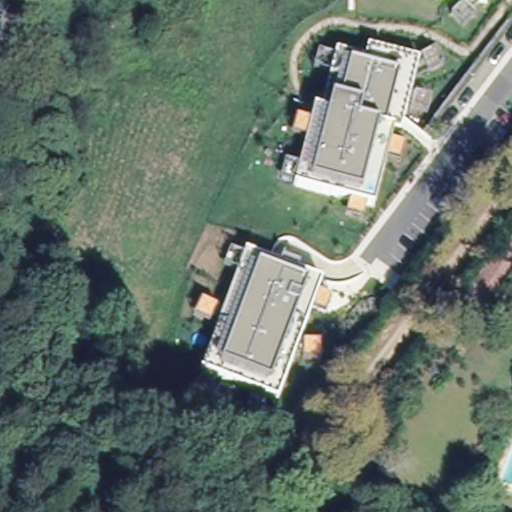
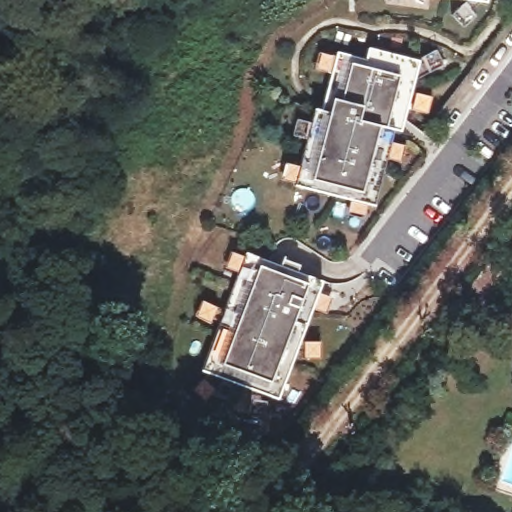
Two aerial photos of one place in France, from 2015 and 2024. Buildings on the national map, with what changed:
unchanged [(488,2),(472,0),(488,0),(488,2)]
unchanged [(316,107),(324,110),(337,52),(367,59),(370,47),(420,59),(402,131),(393,129),(375,205),(295,182),(316,107)]
unchanged [(322,281),(280,400),(202,369),(246,252),(322,281)]

